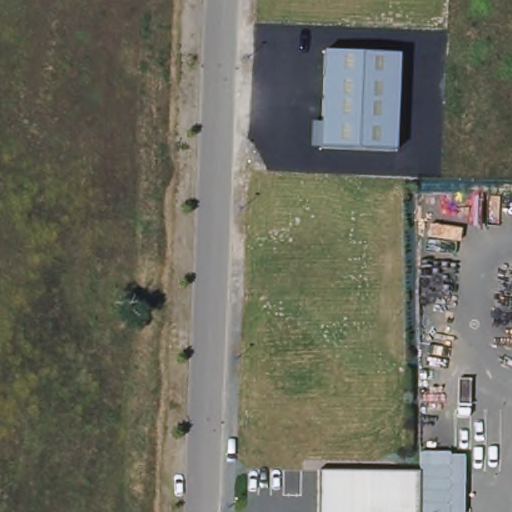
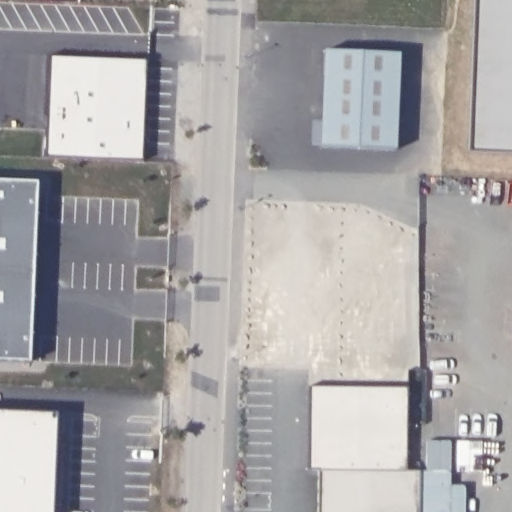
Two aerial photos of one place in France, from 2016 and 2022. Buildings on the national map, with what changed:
new [(512,156),(468,154),(474,0),(512,0),(512,156)]
unchanged [(401,52),(397,153),(320,148),(324,49),(401,52)]
new [(49,57),(147,62),(143,164),(45,160),(49,57)]
new [(37,184),(30,363),(0,362),(0,182),(37,184)]
new [(406,471),(420,472),(420,512),(318,512),(319,469),(307,468),(310,387),(407,388),(406,471)]
new [(53,512),(0,512),(0,411),(57,414),(53,512)]
demolished [(319,512),(319,468),(419,469),(419,452),(449,452),(450,512),(319,512)]

